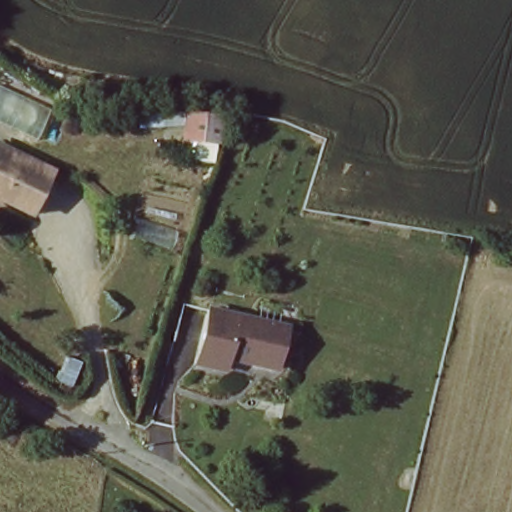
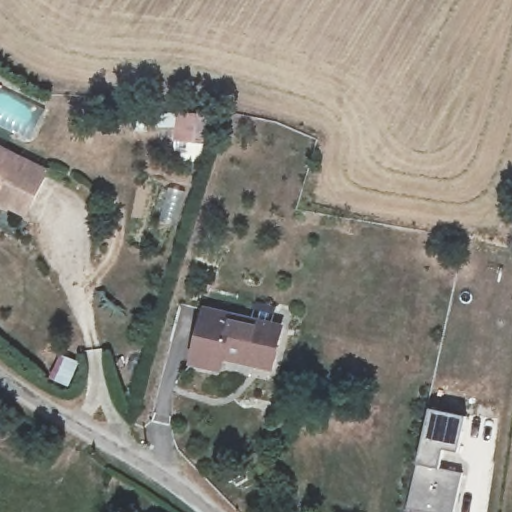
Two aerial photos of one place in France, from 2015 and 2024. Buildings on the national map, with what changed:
unchanged [(193,145),(154,140),(155,129),(157,117),(197,121),(196,127),(193,145)]
unchanged [(48,172),(28,214),(0,200),(0,150),(48,172)]
unchanged [(273,377),(219,366),(216,375),(188,367),(203,304),(286,322),(273,377)]
new [(418,465),(430,411),(464,418),(457,452),(443,450),(439,469),(463,475),(454,512),(421,512),(408,510),(418,465)]

